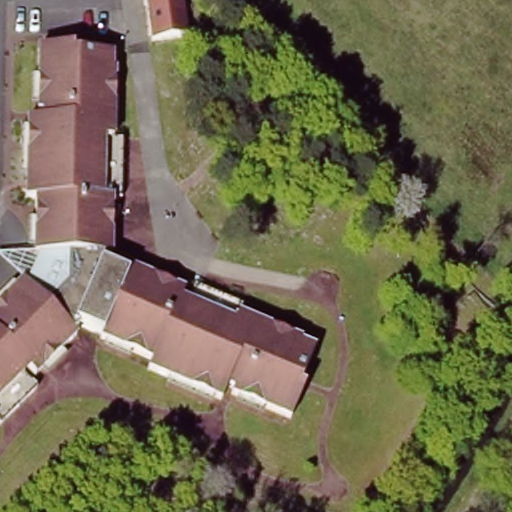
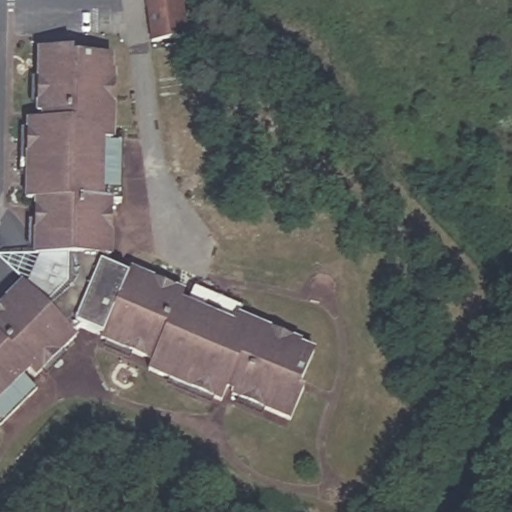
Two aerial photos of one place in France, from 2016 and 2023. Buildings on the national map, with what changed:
unchanged [(190,38),(152,41),(146,0),(184,0),(190,38)]
unchanged [(65,58),(71,57),(107,59),(105,141),(114,141),(115,196),(105,196),(105,258),(97,259),(96,263),(122,277),(127,267),(180,292),(175,299),(183,305),(187,288),(235,304),(232,317),(306,349),(282,420),(222,393),(215,403),(145,373),(147,361),(99,333),(78,329),(30,380),(22,369),(0,393),(0,299),(18,283),(0,265),(0,257),(28,255),(28,221),(27,201),(17,200),(19,121),(32,119),(30,49),(65,49),(65,58)]

